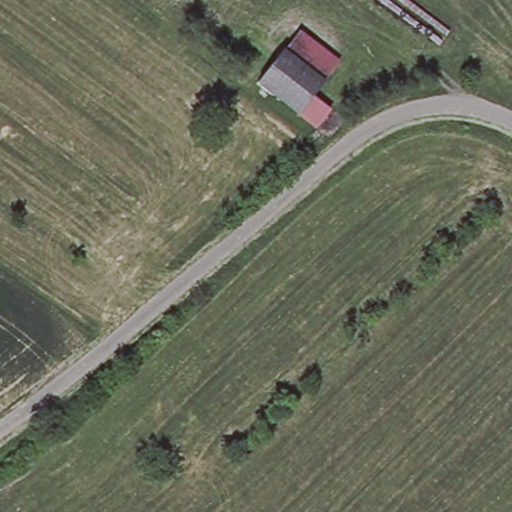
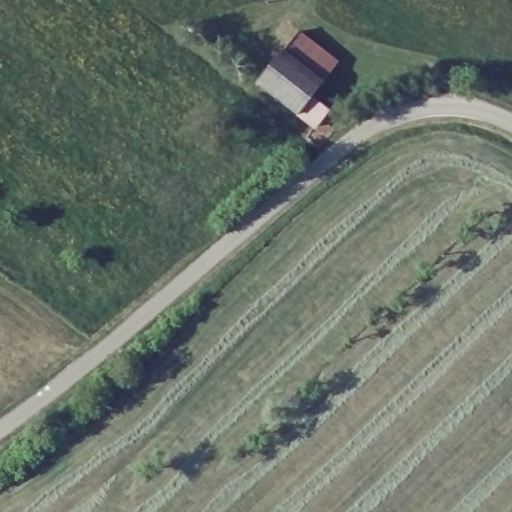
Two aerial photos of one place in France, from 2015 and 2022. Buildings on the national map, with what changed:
unchanged [(291,116),(252,85),(275,53),(285,40),(290,33),(331,64),(326,71),(316,84),(305,99),(322,112),(308,130),(291,116)]

